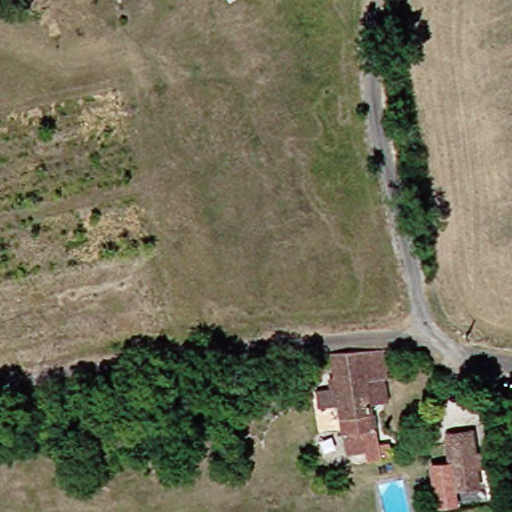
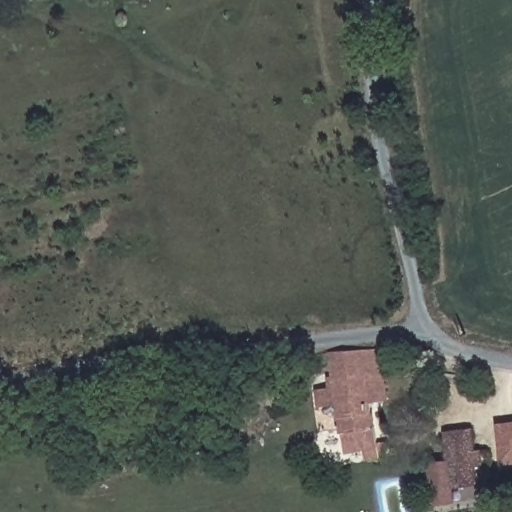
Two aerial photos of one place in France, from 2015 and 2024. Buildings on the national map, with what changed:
unchanged [(394,404),(376,404),(376,449),(389,449),(389,464),(363,465),(363,455),(346,455),(346,436),(339,436),(339,404),(318,403),(318,389),(338,389),(339,354),(373,353),(396,350),(394,404)]
new [(512,422),(512,464),(502,465),(497,424),(512,422)]
unchanged [(434,507),(428,464),(447,462),(444,433),(473,430),(475,452),(486,450),(488,466),(478,467),(479,484),(454,488),(457,503),(434,507)]

